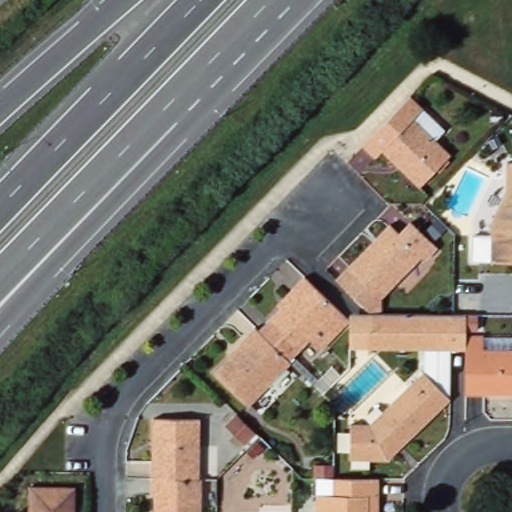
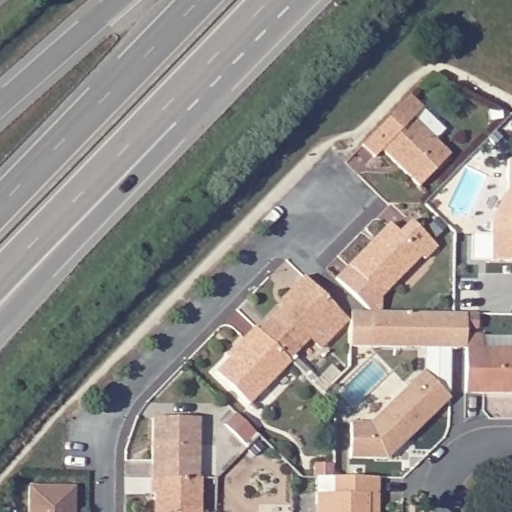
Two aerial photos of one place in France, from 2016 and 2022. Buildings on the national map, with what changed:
unchanged [(416,95),(450,129),(440,139),(456,155),(425,185),(388,148),(382,157),(368,142),(416,95)]
unchanged [(512,190),(512,160),(512,234),(498,234),(496,233),(497,220),(512,190)]
unchanged [(343,279),(356,266),(397,224),(410,236),(421,225),(444,247),(432,258),(429,255),(388,298),(387,312),(377,311),(343,279)]
unchanged [(498,234),(512,234),(512,262),(505,261),(498,253),(498,234)]
unchanged [(316,339),(306,349),(276,320),(289,307),(284,303),(300,287),(312,275),(320,283),(326,290),(346,309),(342,311),(316,339)]
unchanged [(358,311),(377,311),(387,312),(462,313),(475,314),(487,314),(487,330),(474,330),(474,333),(474,349),(465,348),(432,348),(357,347),(357,321),(358,311)]
unchanged [(220,371),(235,356),(232,353),(248,337),(260,326),(296,361),(253,404),(220,371)]
unchanged [(474,349),(474,333),(493,334),(492,336),(512,336),(512,393),(473,393),(474,349)]
unchanged [(432,348),(465,348),(458,398),(432,370),(432,348)]
unchanged [(358,422),(377,423),(432,370),(458,398),(457,399),(396,459),(357,459),(358,422)]
unchanged [(242,412),(261,431),(250,442),(231,423),(242,412)]
unchanged [(157,417),(204,418),(203,479),(178,478),(156,478),(157,417)]
unchanged [(321,512),(321,493),(337,494),(337,476),(323,476),(319,476),(320,463),(339,463),(339,476),(341,476),(362,477),(384,477),(383,494),(383,512),(321,512)]
unchanged [(178,478),(203,479),(206,479),(205,512),(158,512),(158,494),(155,494),(156,478),(178,478)]
unchanged [(79,485),(79,512),(34,512),(34,485),(79,485)]

